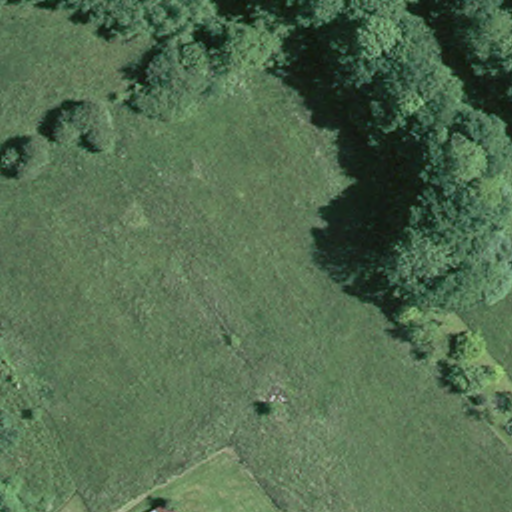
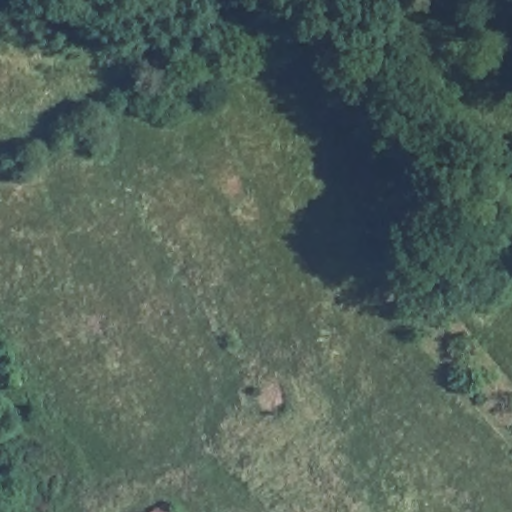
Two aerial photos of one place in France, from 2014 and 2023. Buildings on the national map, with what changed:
unchanged [(167,512),(152,512),(163,505),(167,512)]

